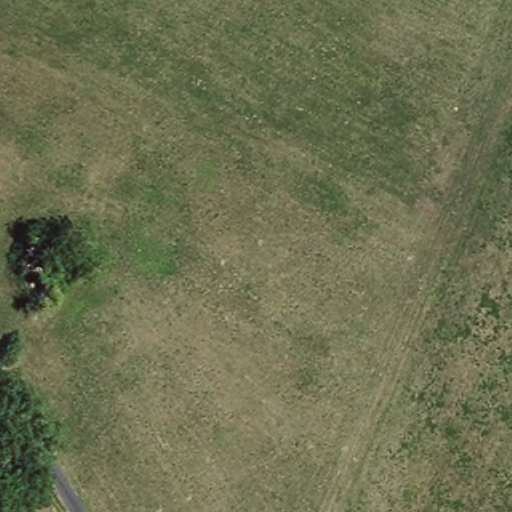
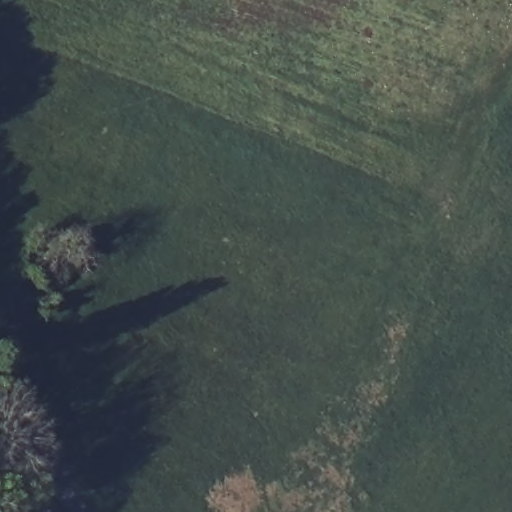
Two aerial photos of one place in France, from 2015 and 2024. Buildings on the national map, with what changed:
unchanged [(59,277),(33,268),(44,239),(69,248),(59,277)]

